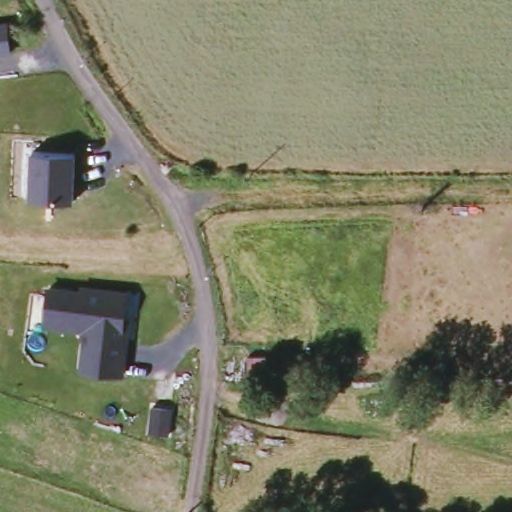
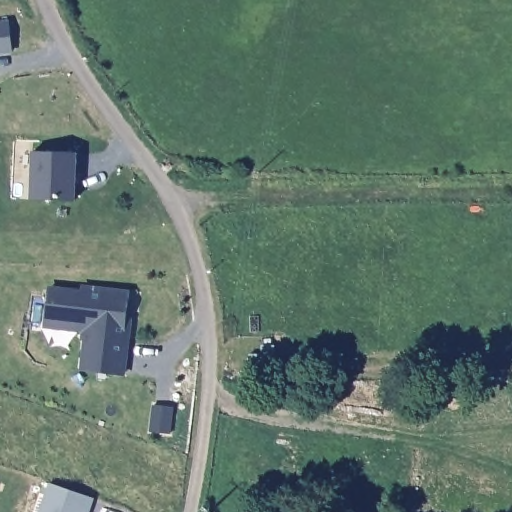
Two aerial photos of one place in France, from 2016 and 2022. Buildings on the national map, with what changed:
unchanged [(11,52),(0,54),(0,22),(10,21),(11,52)]
unchanged [(33,154),(78,156),(76,202),(32,201),(33,154)]
unchanged [(80,373),(83,335),(41,332),(41,321),(43,295),(76,296),(77,291),(122,294),(120,325),(125,326),(125,331),(122,375),(80,373)]
new [(88,512),(39,512),(48,484),(92,499),(88,512)]

